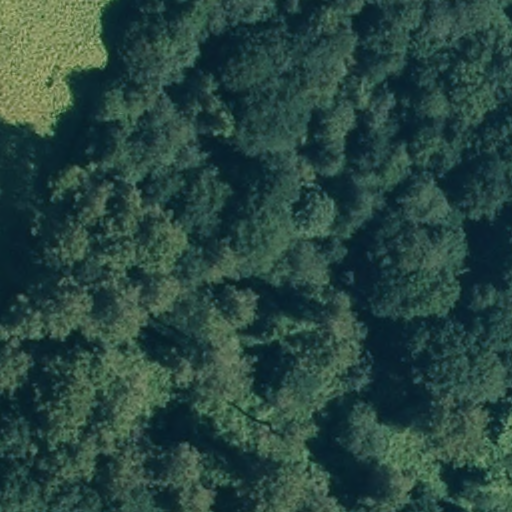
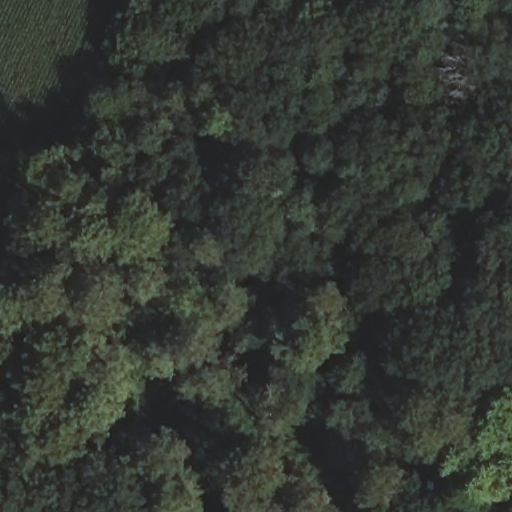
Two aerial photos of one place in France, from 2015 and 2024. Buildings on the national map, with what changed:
[]

